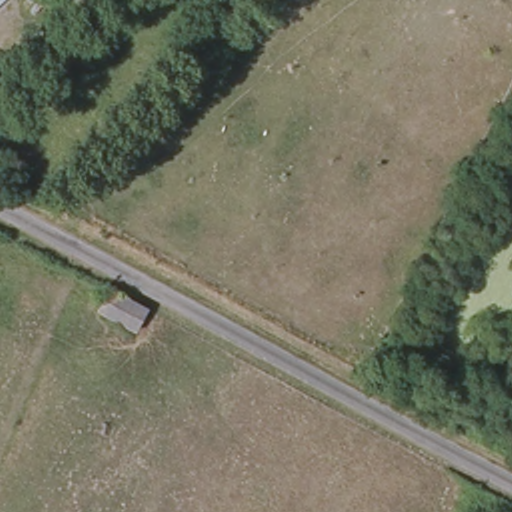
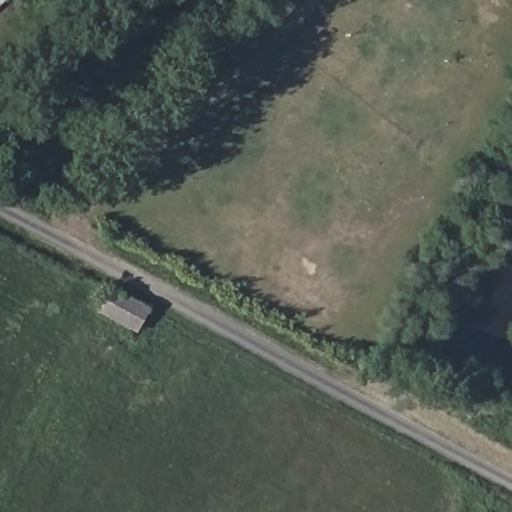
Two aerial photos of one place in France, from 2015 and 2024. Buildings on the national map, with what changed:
unchanged [(136,330),(98,308),(109,286),(149,309),(136,330)]

